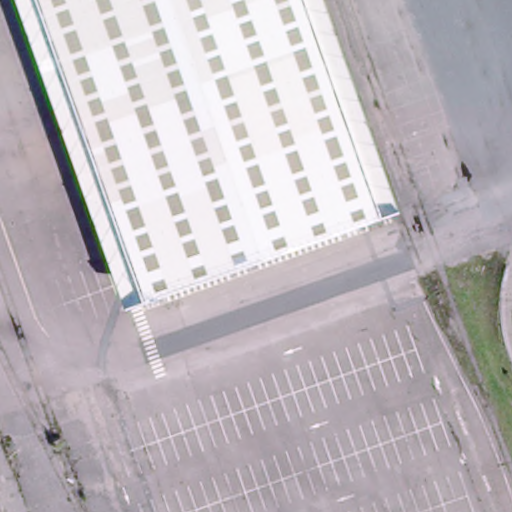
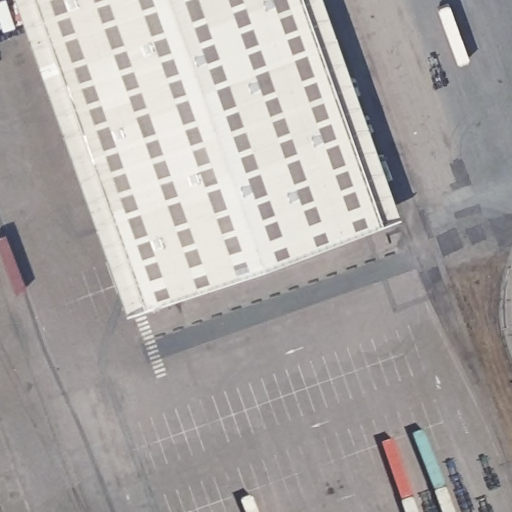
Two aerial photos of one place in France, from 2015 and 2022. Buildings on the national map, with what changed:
unchanged [(41,0),(307,0),(385,217),(149,301),(41,0)]

